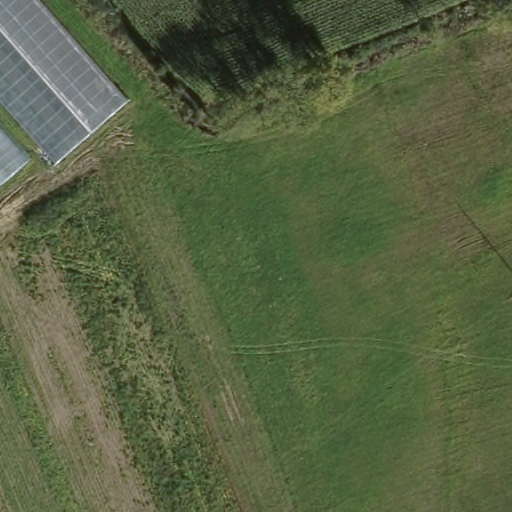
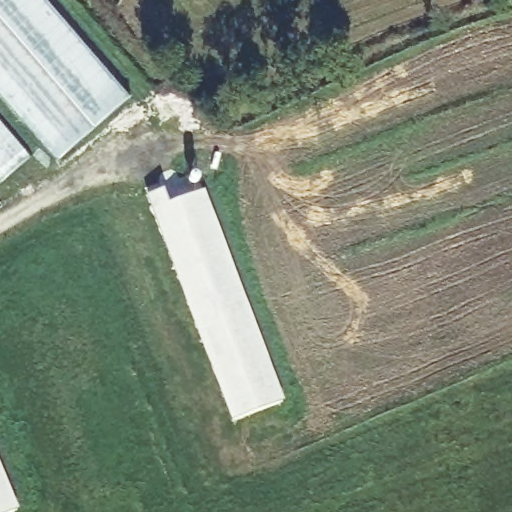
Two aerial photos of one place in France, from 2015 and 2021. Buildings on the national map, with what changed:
unchanged [(123,98),(57,152),(0,87),(0,0),(39,0),(123,98)]
unchanged [(32,158),(0,185),(0,122),(32,158)]
new [(164,201),(169,215),(200,203),(276,415),(230,431),(149,207),(164,201)]

